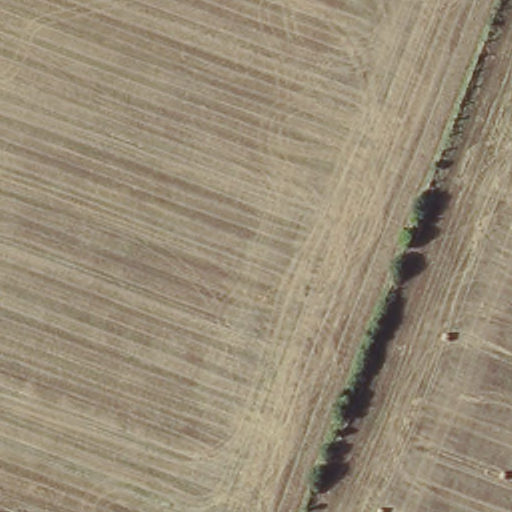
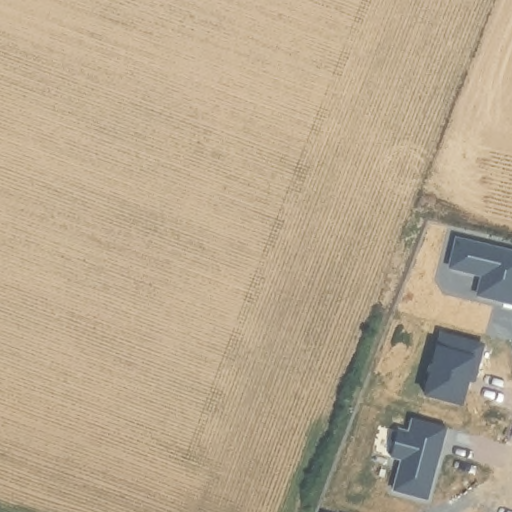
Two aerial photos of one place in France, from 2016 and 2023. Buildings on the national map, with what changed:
new [(512,297),(481,289),(486,270),(454,262),(461,234),(512,247),(512,297)]
new [(487,340),(478,375),(471,373),(465,399),(430,389),(445,329),(487,340)]
new [(398,485),(406,454),(395,451),(402,424),(413,428),(417,413),(450,422),(431,494),(398,485)]

